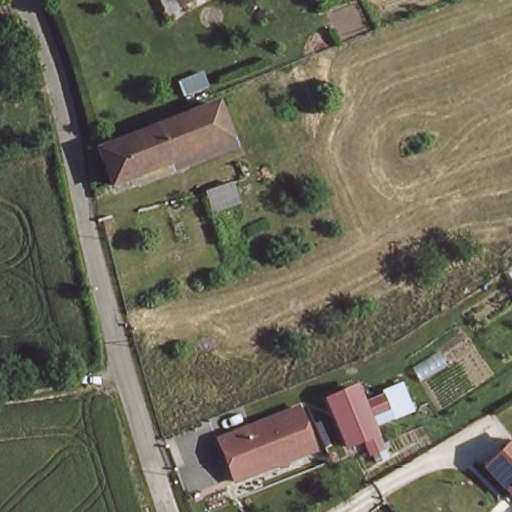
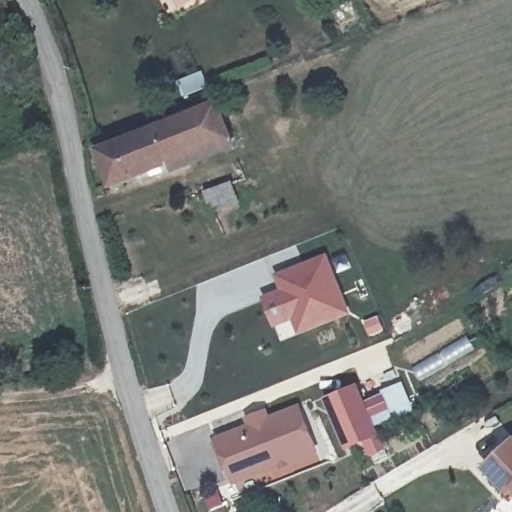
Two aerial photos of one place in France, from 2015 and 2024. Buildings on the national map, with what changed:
unchanged [(167,0),(207,0),(175,15),(167,0)]
unchanged [(125,184),(108,141),(221,99),(239,140),(125,184)]
unchanged [(210,210),(201,192),(223,185),(232,198),(210,210)]
new [(274,327),(261,296),(280,289),(275,274),(327,254),(350,313),(297,334),(292,321),(274,327)]
new [(382,394),(382,390),(402,382),(413,410),(392,420),(376,426),(379,434),(385,449),(389,458),(375,465),(370,455),(368,456),(361,440),(375,435),(372,428),(361,402),(382,394)]
unchanged [(346,447),(325,401),(355,390),(375,435),(346,447)]
unchanged [(227,463),(218,432),(301,409),(315,452),(255,468),(231,475),(227,463)]
unchanged [(512,447),(512,491),(490,470),(512,447)]

